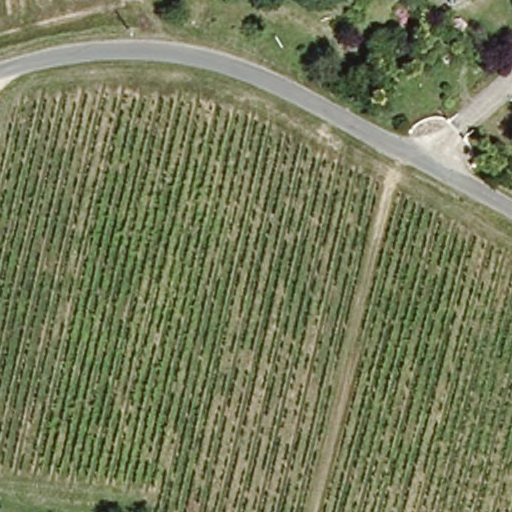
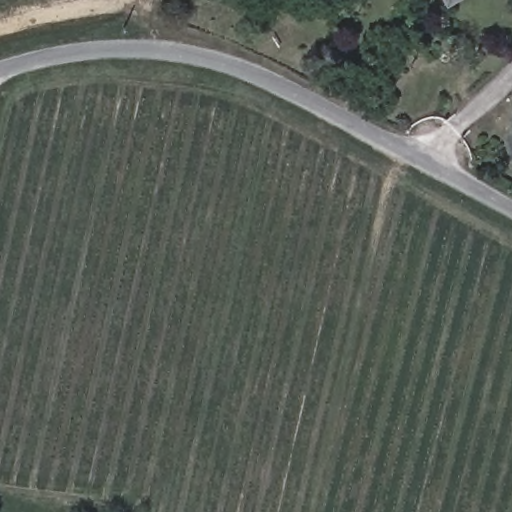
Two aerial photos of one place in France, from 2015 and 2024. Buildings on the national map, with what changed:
unchanged [(447,10),(443,4),(440,0),(465,0),(454,6),(447,10)]

